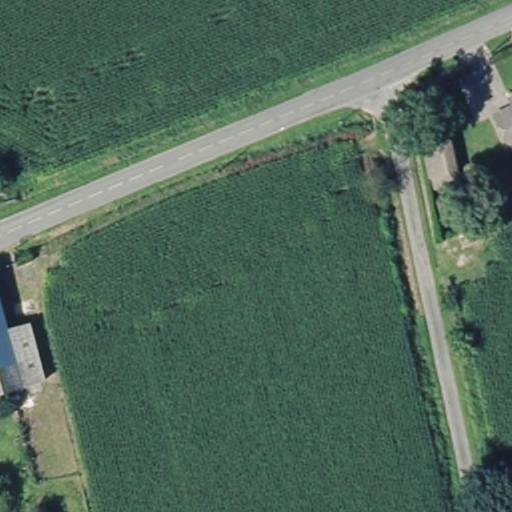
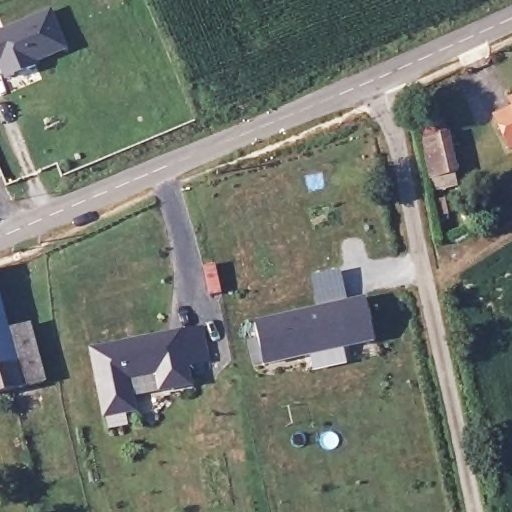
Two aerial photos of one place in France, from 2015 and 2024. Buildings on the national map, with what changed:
new [(67,49),(36,62),(38,66),(7,78),(0,60),(0,34),(52,12),(67,49)]
unchanged [(510,103),(512,102),(512,110),(510,103)]
unchanged [(512,110),(512,147),(509,148),(494,118),(512,110)]
unchanged [(463,186),(435,194),(420,140),(453,132),(463,186)]
unchanged [(0,284),(10,327),(29,321),(41,378),(22,384),(28,408),(0,416),(0,284)]
new [(363,300),(372,341),(261,365),(252,323),(363,300)]
new [(202,331),(207,361),(187,365),(190,382),(165,387),(162,370),(125,377),(131,408),(106,414),(95,351),(182,335),(202,331)]

